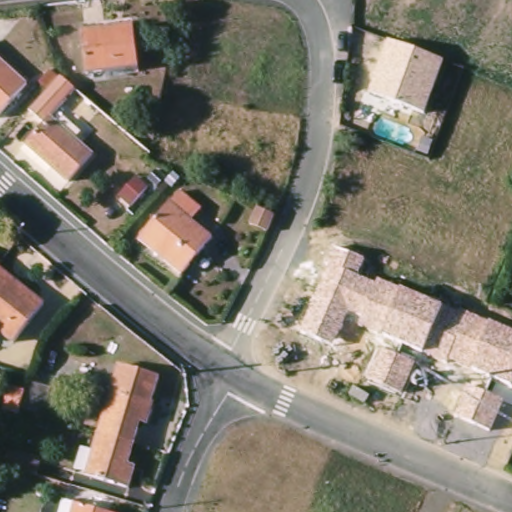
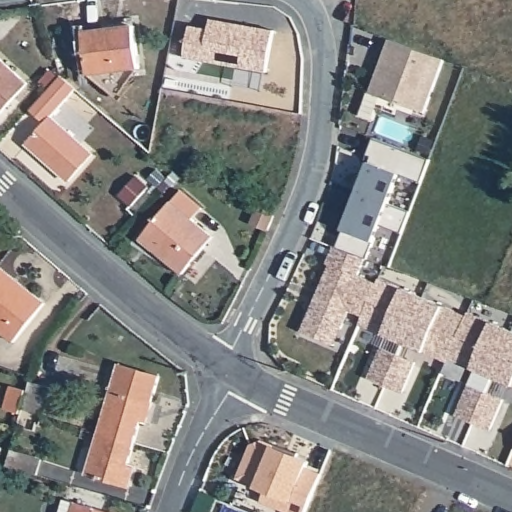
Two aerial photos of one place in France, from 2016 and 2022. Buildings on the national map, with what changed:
new [(190,27),(209,30),(210,20),(274,32),(267,72),(184,57),(190,27)]
unchanged [(134,26),(140,67),(89,74),(85,32),(134,26)]
unchanged [(425,113),(368,93),(387,39),(443,62),(425,113)]
unchanged [(27,84),(0,113),(0,58),(27,84)]
unchanged [(98,157),(74,187),(31,149),(56,122),(98,157)]
new [(380,225),(373,242),(366,261),(337,250),(344,229),(369,162),(366,161),(374,139),(430,161),(422,182),(398,174),(387,206),(410,213),(403,232),(380,225)]
unchanged [(144,232),(180,189),(202,207),(191,219),(213,237),(183,275),(154,251),(139,239),(144,232)]
unchanged [(258,207),(276,214),(268,232),(251,223),(258,207)]
unchanged [(447,358),(445,362),(424,352),(381,335),(359,326),(362,317),(350,313),(334,346),(297,332),(327,268),(324,267),(332,247),(366,261),(358,276),(376,284),(379,280),(401,289),(442,307),(444,304),(490,324),(512,333),(512,388),(472,371),(447,358)]
unchanged [(46,308),(15,347),(0,335),(0,271),(46,308)]
unchanged [(379,348),(415,362),(403,396),(367,380),(379,348)]
unchanged [(150,428),(141,426),(135,446),(100,436),(120,368),(161,381),(153,405),(156,407),(150,428)]
unchanged [(10,385),(28,390),(30,381),(53,387),(45,415),(22,408),(21,413),(3,408),(10,385)]
unchanged [(466,386),(502,401),(489,430),(454,416),(466,386)]
unchanged [(131,492),(122,490),(87,480),(100,436),(135,446),(129,467),(136,470),(131,492)]
new [(256,488),(237,478),(251,445),(262,441),(273,447),(310,462),(307,468),(321,475),(305,512),(288,512),(261,502),(266,492),(256,488)]
unchanged [(12,450),(43,458),(38,475),(8,466),(12,450)]
unchanged [(60,512),(63,501),(102,512),(60,512)]

